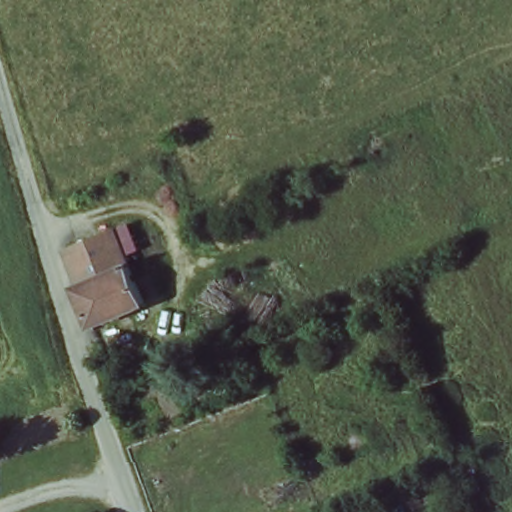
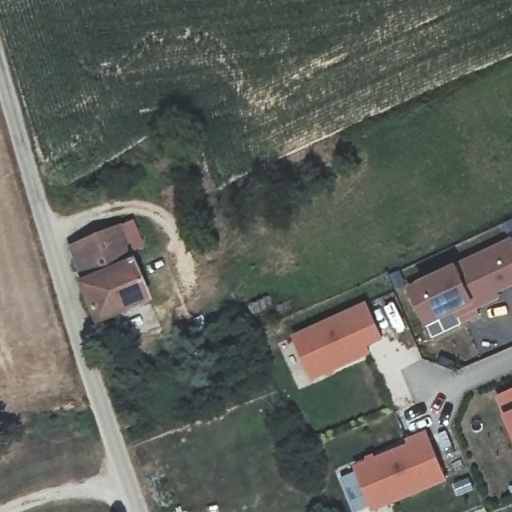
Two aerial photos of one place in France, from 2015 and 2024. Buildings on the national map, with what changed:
unchanged [(84,276),(76,252),(75,247),(123,231),(137,224),(146,249),(132,254),(133,258),(84,276)]
new [(497,293),(500,299),(457,319),(452,314),(437,321),(425,327),(406,286),(418,281),(457,263),(512,238),(512,286),(497,293)]
unchanged [(151,304),(95,324),(82,286),(87,284),(84,276),(133,258),(151,304)]
new [(312,380),(292,335),(368,302),(384,340),(368,347),(371,355),(312,380)]
unchanged [(120,352),(127,374),(116,378),(108,356),(120,352)]
new [(504,415),(495,396),(512,389),(512,436),(504,415)]
new [(372,512),(353,466),(366,460),(365,458),(374,454),(375,457),(407,443),(405,440),(427,431),(447,481),(372,512)]

